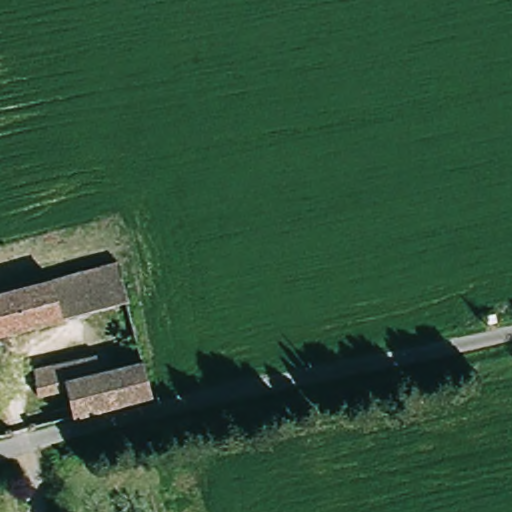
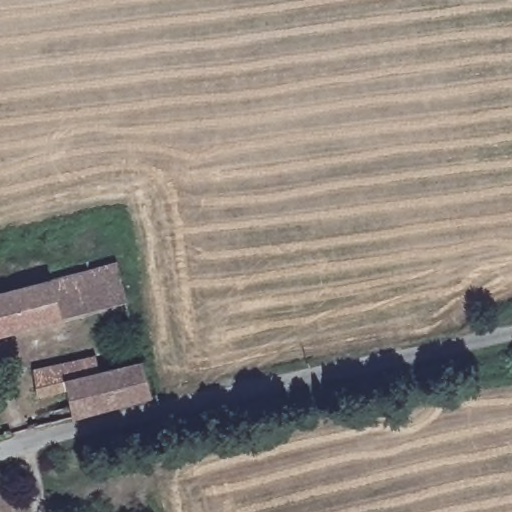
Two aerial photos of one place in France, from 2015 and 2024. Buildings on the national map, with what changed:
unchanged [(48,279),(112,262),(112,263),(123,303),(123,304),(58,320),(48,279)]
unchanged [(58,320),(0,335),(0,291),(48,279),(58,320)]
unchanged [(485,316),(495,314),(496,322),(487,324),(485,316)]
unchanged [(67,386),(35,394),(28,369),(88,354),(92,369),(137,358),(147,396),(74,414),(67,386)]

